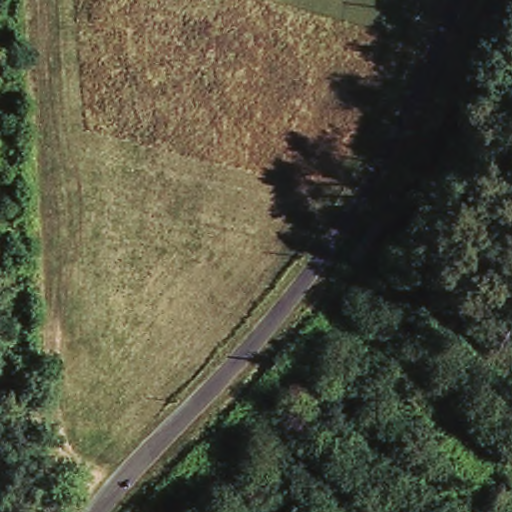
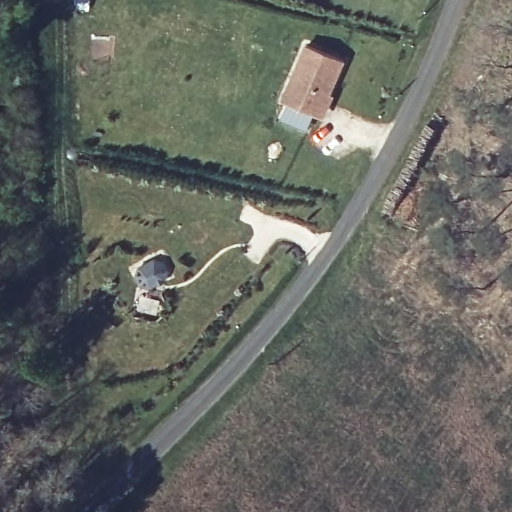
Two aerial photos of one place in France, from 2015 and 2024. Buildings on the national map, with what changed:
new [(346,61),(331,93),(335,96),(325,117),(282,100),(307,44),(346,61)]

